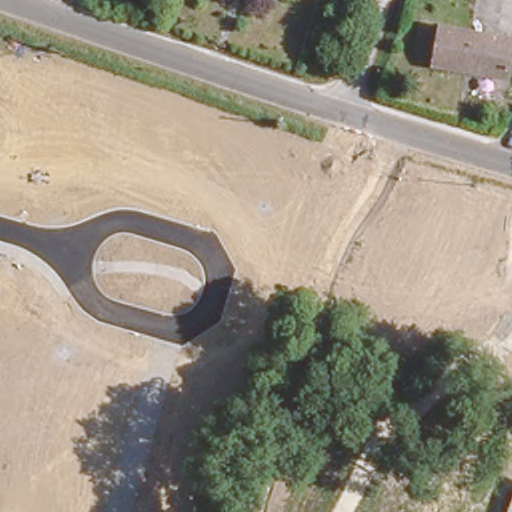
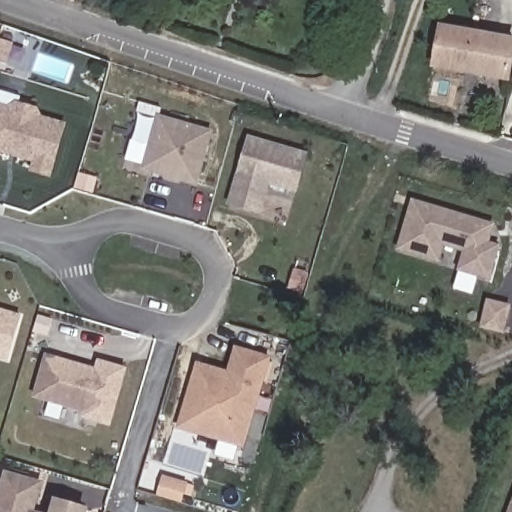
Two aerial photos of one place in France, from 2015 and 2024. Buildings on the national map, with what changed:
unchanged [(350,24),(333,21),(340,0),(353,0),(356,1),(350,24)]
unchanged [(434,61),(434,57),(439,27),(441,19),(512,32),(512,43),(507,72),(505,76),(434,61)]
new [(29,172),(31,163),(0,154),(0,104),(6,106),(15,101),(37,108),(42,116),(66,122),(50,178),(29,172)]
new [(140,171),(157,115),(213,130),(197,186),(140,171)]
new [(298,193),(269,185),(260,216),(227,206),(248,135),(308,153),(298,193)]
new [(489,281),(456,271),(461,253),(444,247),(438,265),(395,252),(411,199),(494,223),(489,242),(499,245),(489,281)]
new [(488,302),(509,306),(502,333),(481,328),(488,302)]
new [(0,309),(22,315),(8,360),(0,358),(0,309)]
new [(239,445),(174,426),(192,363),(223,372),(230,346),(264,356),(239,445)]
new [(80,417),(82,412),(32,398),(45,354),(94,368),(97,359),(127,368),(110,426),(80,417)]
new [(0,482),(3,470),(42,482),(33,511),(38,512),(0,512),(0,482)]
new [(53,498),(89,508),(88,512),(50,512),(53,498)]
unchanged [(512,507),(512,512),(510,512),(512,507)]

